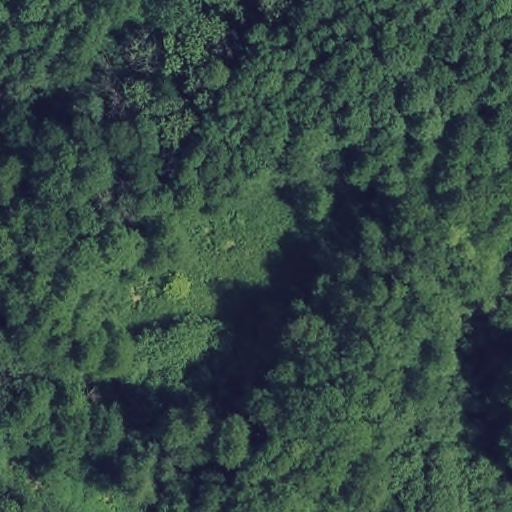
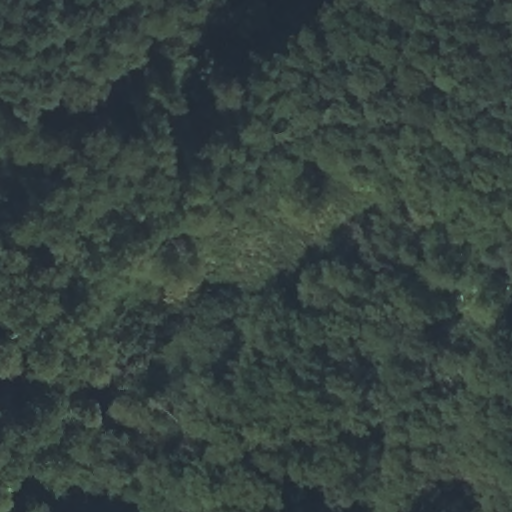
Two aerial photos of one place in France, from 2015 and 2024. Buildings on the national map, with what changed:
[]

